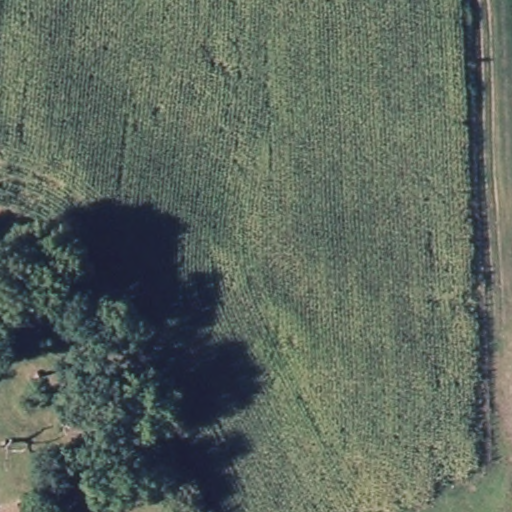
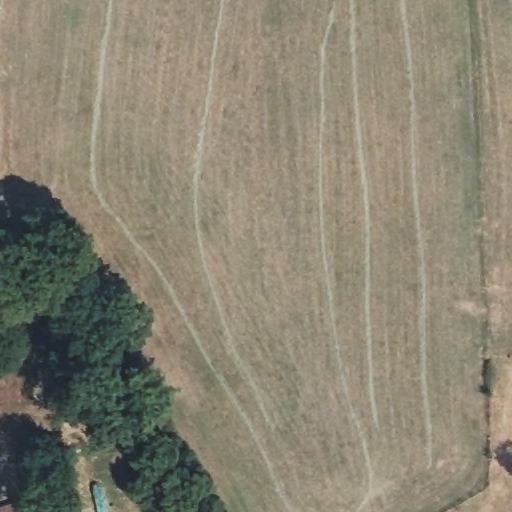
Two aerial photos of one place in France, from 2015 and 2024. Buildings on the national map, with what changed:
unchanged [(25,512),(4,512),(1,506),(19,499),(25,512)]

